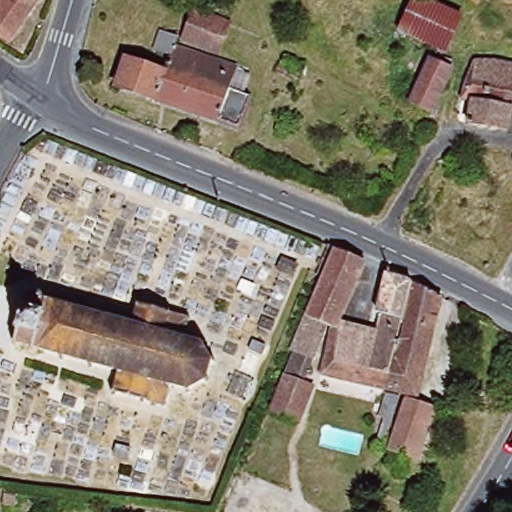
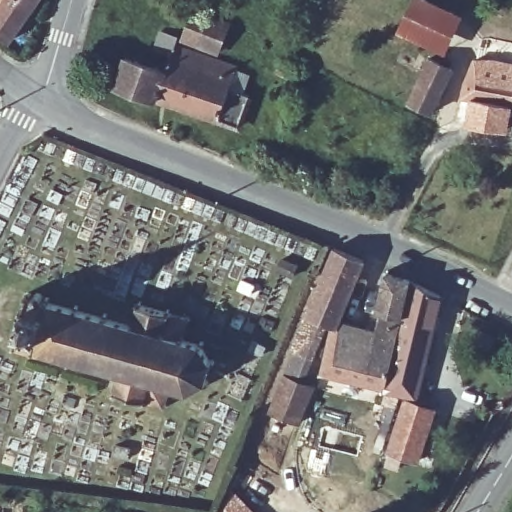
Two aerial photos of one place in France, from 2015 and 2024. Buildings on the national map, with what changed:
unchanged [(0,0),(33,0),(5,40),(0,37),(0,0)]
unchanged [(456,25),(446,47),(400,26),(410,4),(456,25)]
unchanged [(221,40),(214,58),(180,45),(191,15),(246,35),(242,47),(221,40)]
unchanged [(113,90),(122,63),(161,76),(167,60),(151,54),(157,38),(174,43),(171,52),(233,71),(225,97),(242,103),(232,131),(113,90)]
unchanged [(466,121),(469,98),(458,95),(463,78),(472,58),(494,59),(512,63),(512,84),(508,106),(505,128),(466,121)]
unchanged [(292,72),(288,75),(277,68),(282,59),(300,67),(297,73),(292,72)]
unchanged [(406,105),(427,61),(449,72),(427,115),(406,105)]
unchanged [(512,84),(512,107),(508,106),(512,84)]
unchanged [(341,316),(331,312),(302,383),(312,388),(297,423),(269,411),(292,351),(290,349),(332,248),(362,260),(341,316)]
unchanged [(374,335),(377,322),(378,313),(375,312),(382,273),(408,280),(419,285),(439,295),(416,397),(385,390),(351,382),(362,333),(374,335)]
unchanged [(142,401),(141,404),(139,403),(139,401),(115,395),(113,396),(108,390),(112,388),(117,371),(91,364),(91,367),(87,366),(87,362),(63,356),(62,359),(59,358),(59,355),(34,348),(32,351),(29,349),(30,347),(16,343),(15,346),(12,346),(12,342),(9,341),(11,338),(14,339),(16,331),(12,330),(19,308),(22,308),(24,300),(22,299),(22,294),(26,295),(27,292),(30,293),(30,297),(32,297),(32,294),(36,291),(40,293),(42,296),(41,299),(43,300),(45,295),(47,297),(47,301),(72,309),(74,304),(77,305),(76,310),(101,317),(102,312),(105,313),(104,317),(130,324),(136,306),(133,305),(134,302),(137,303),(137,300),(141,301),(140,304),(165,311),(165,307),(169,309),(167,312),(186,317),(181,338),(197,342),(201,338),(202,341),(201,344),(206,358),(211,359),(211,362),(208,362),(204,376),(206,380),(202,382),(200,379),(197,379),(187,388),(187,391),(184,391),(184,388),(167,383),(161,406),(142,401)]
unchanged [(321,376),(332,327),(337,328),(362,333),(351,382),(321,376)]
unchanged [(388,449),(405,400),(432,409),(416,459),(388,449)]

